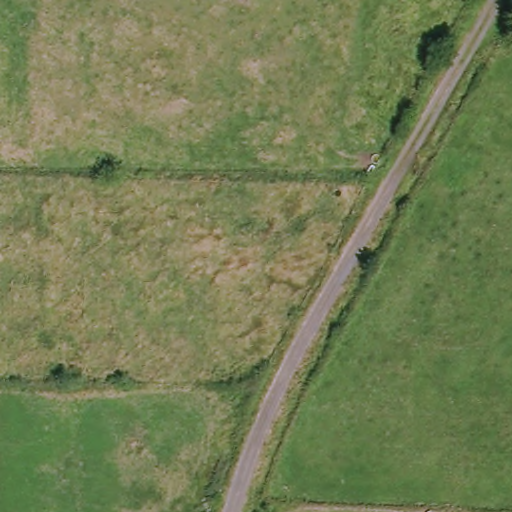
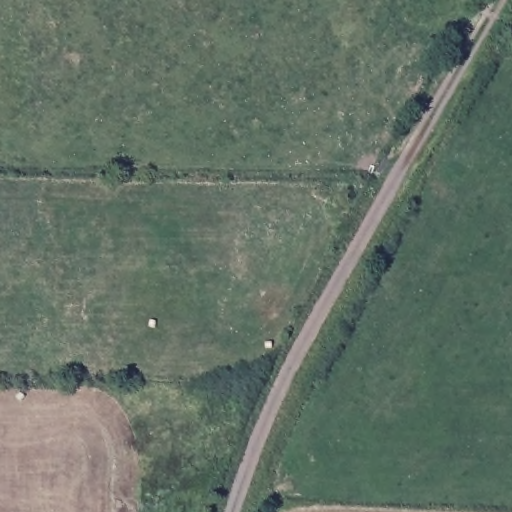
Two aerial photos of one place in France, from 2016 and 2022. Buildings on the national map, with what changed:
[]

